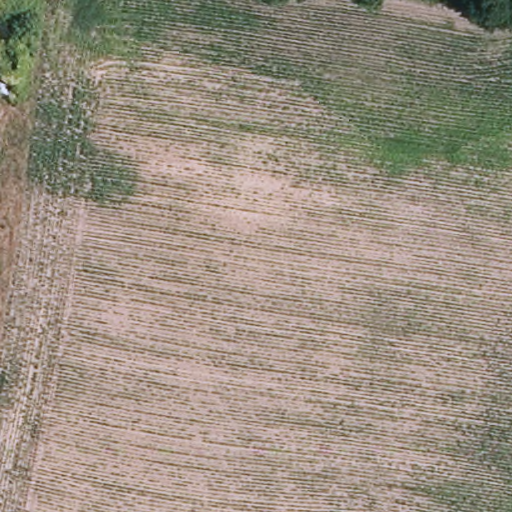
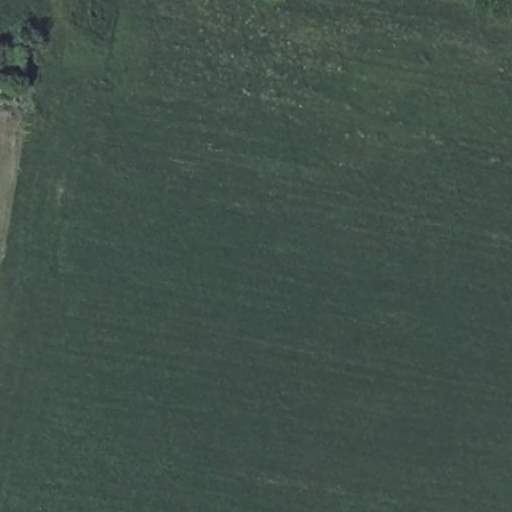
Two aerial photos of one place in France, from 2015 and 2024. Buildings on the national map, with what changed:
unchanged [(0,98),(0,52),(1,47),(25,55),(14,95),(13,102),(0,98)]

